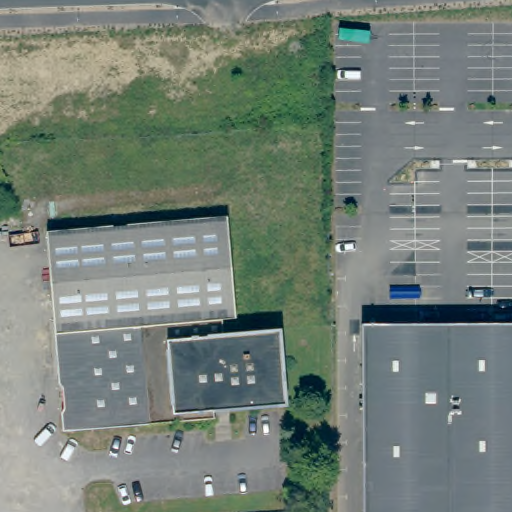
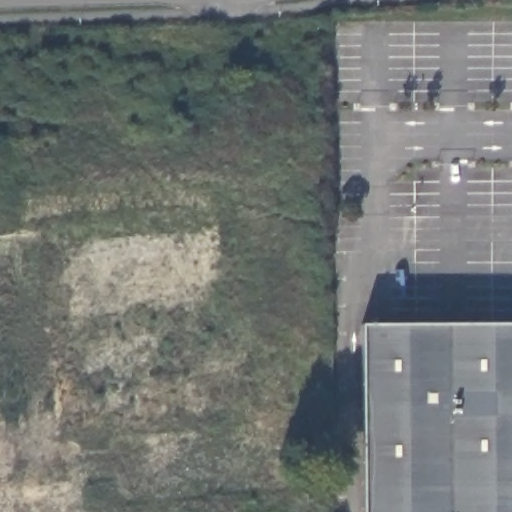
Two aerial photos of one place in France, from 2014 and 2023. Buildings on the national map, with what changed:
demolished [(232,214),(241,315),(228,316),(230,332),(286,327),(291,401),(220,407),(220,416),(159,420),(159,422),(67,428),(66,412),(69,407),(68,383),(65,380),(53,230),(232,214)]
unchanged [(367,342),(512,340),(512,512),(369,512),(367,342)]

